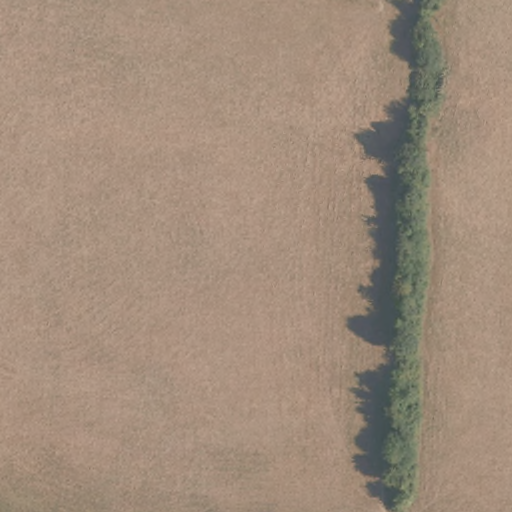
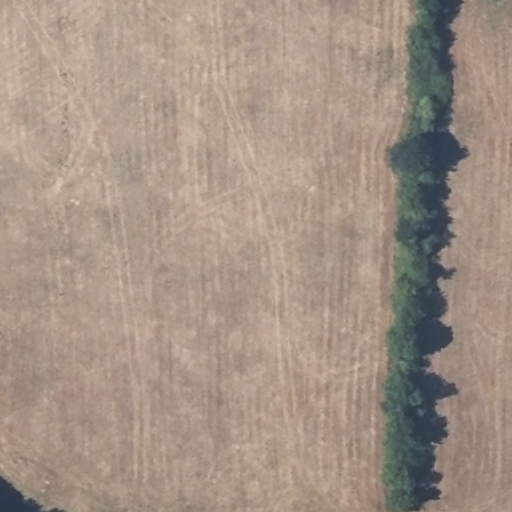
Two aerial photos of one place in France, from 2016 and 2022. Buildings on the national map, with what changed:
[]

